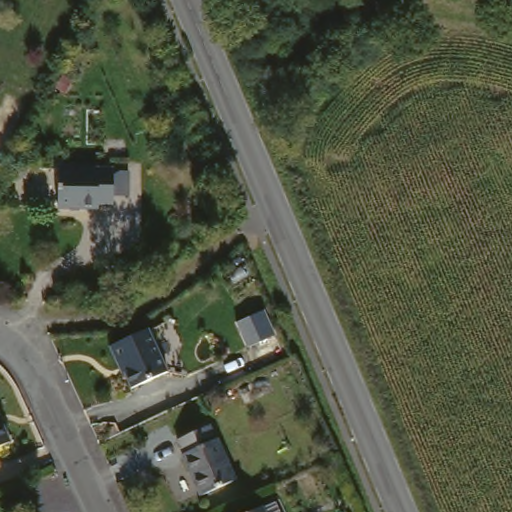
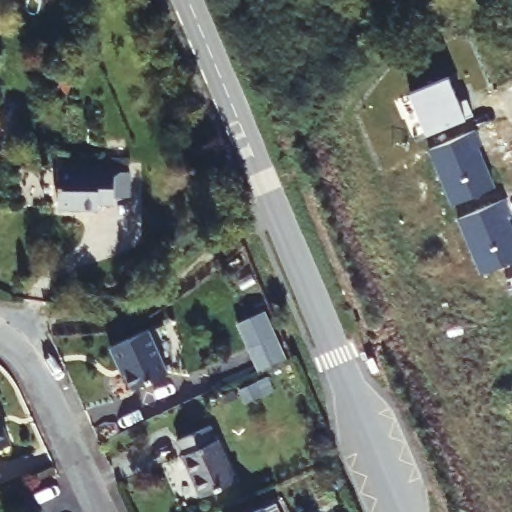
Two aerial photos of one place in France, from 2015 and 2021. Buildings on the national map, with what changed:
new [(447,76),(458,102),(465,98),(472,114),(426,133),(408,92),(447,76)]
new [(473,130),(479,146),(475,147),(492,187),(450,204),(427,149),(473,130)]
unchanged [(108,168),(123,167),(123,192),(108,192),(108,200),(93,200),(94,205),(54,206),(53,166),(108,165),(108,168)]
new [(508,215),(504,216),(512,234),(512,260),(479,274),(457,219),(502,200),(508,215)]
new [(264,309),(275,334),(247,346),(236,321),(264,309)]
unchanged [(172,369),(136,385),(125,359),(122,360),(115,343),(154,326),(172,369)]
unchanged [(0,443),(0,409),(12,438),(0,443)]
unchanged [(213,421),(238,476),(201,493),(176,438),(213,421)]
unchanged [(247,512),(262,505),(265,512),(247,512)]

